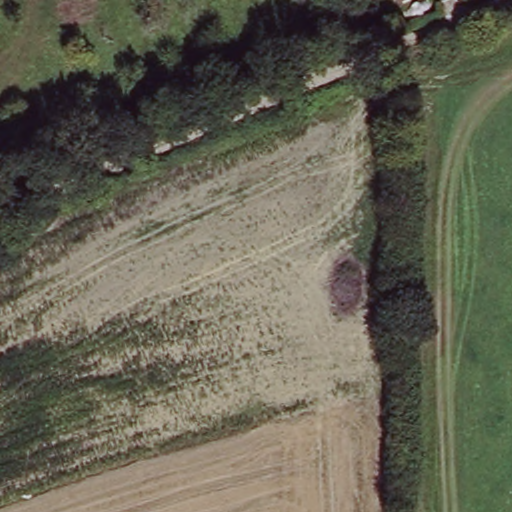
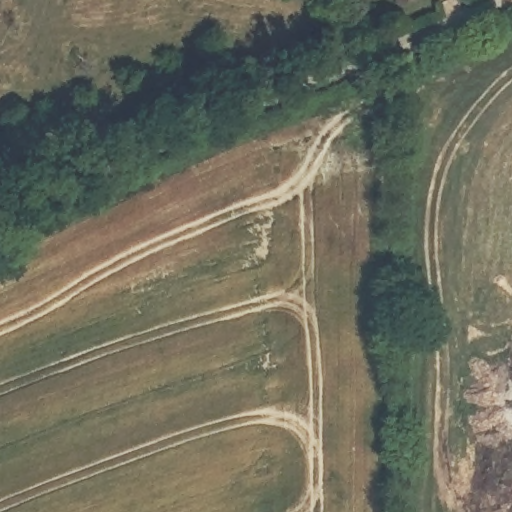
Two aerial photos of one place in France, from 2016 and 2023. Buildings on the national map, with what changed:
unchanged [(407,0),(402,2),(401,0),(407,0)]

